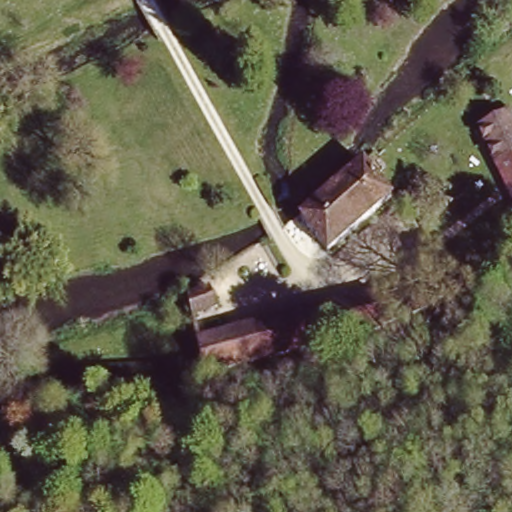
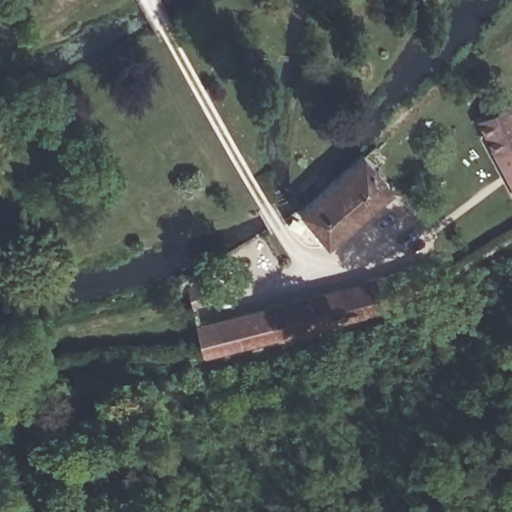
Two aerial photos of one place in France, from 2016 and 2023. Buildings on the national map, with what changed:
unchanged [(512,199),(472,121),(505,104),(512,118),(512,199)]
unchanged [(356,152),(387,186),(326,241),(295,206),(356,152)]
unchanged [(191,327),(370,277),(372,284),(416,272),(423,297),(380,307),(380,311),(201,359),(191,327)]
unchanged [(181,288),(205,275),(215,293),(188,309),(181,288)]

